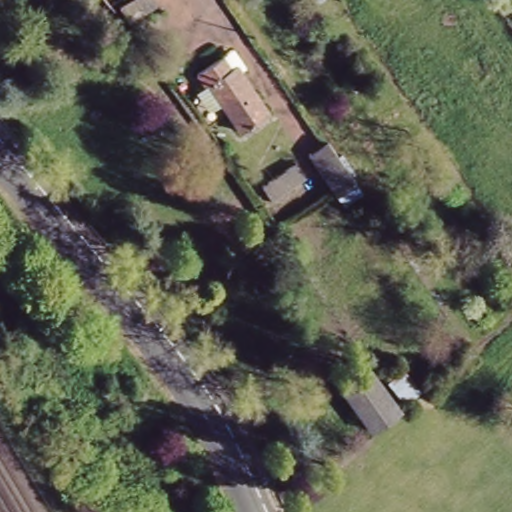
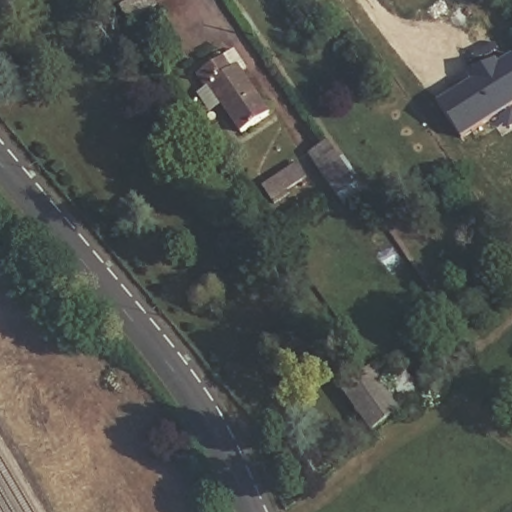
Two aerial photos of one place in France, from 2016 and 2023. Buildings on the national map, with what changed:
unchanged [(120,0),(148,0),(126,12),(120,0)]
new [(463,142),(436,105),(468,82),(466,79),(494,60),(497,64),(512,55),(512,111),(463,142)]
unchanged [(240,135),(207,87),(203,90),(195,79),(219,62),(227,74),(233,69),(238,76),(266,116),(240,135)]
unchanged [(334,200),(306,160),(326,145),(354,186),(334,200)]
unchanged [(314,188),(279,211),(258,184),(294,161),(314,188)]
unchanged [(371,370),(398,409),(371,429),(343,391),(371,370)]

